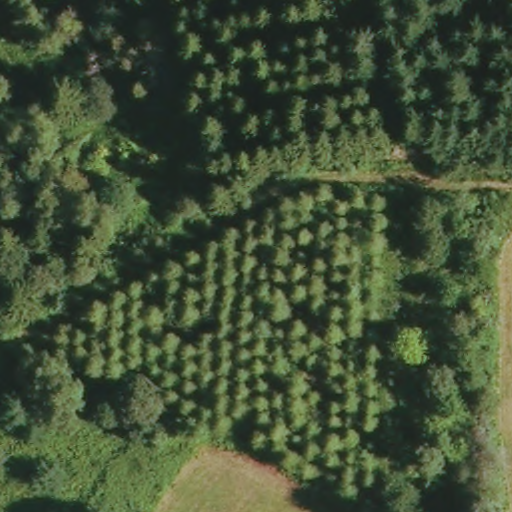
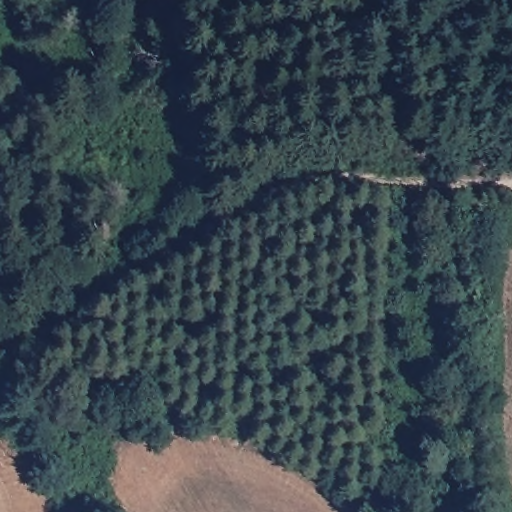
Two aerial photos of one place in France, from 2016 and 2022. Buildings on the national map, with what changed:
[]

